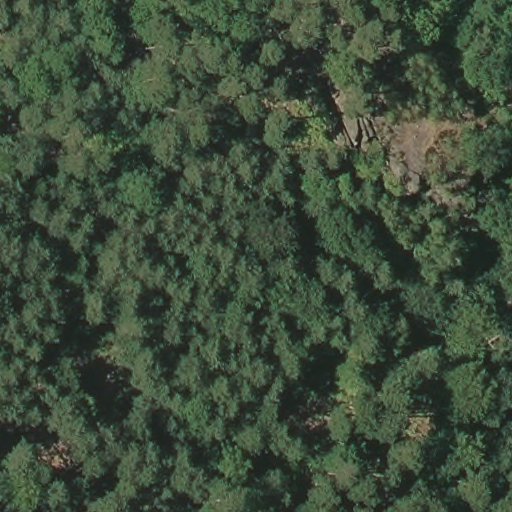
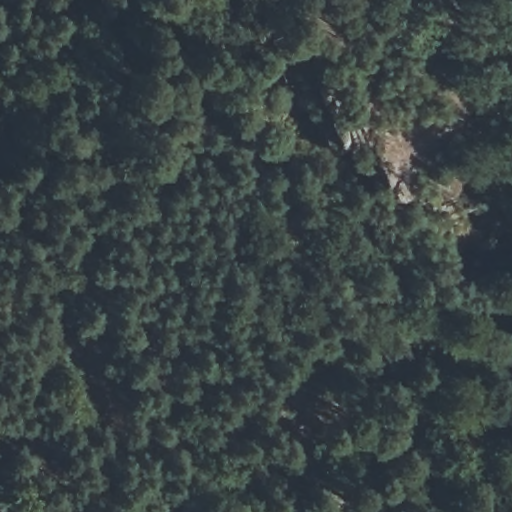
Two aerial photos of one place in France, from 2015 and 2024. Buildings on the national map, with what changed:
unchanged [(512,99),(512,126),(488,131),(483,109),(512,99)]

